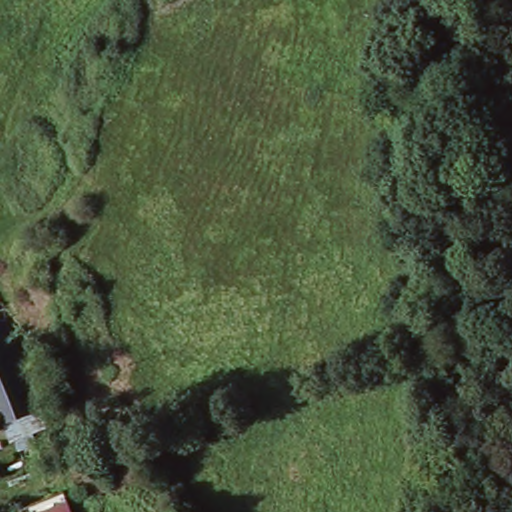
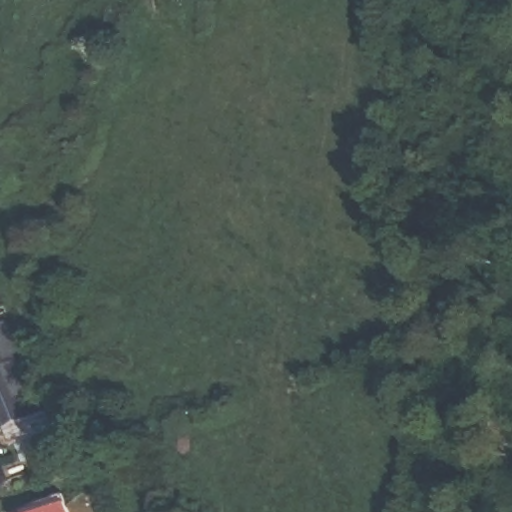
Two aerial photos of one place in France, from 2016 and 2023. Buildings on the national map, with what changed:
unchanged [(9,347),(14,358),(17,358),(30,393),(17,396),(25,414),(0,421),(0,322),(11,320),(16,345),(9,347)]
unchanged [(69,512),(33,512),(65,500),(69,512)]

